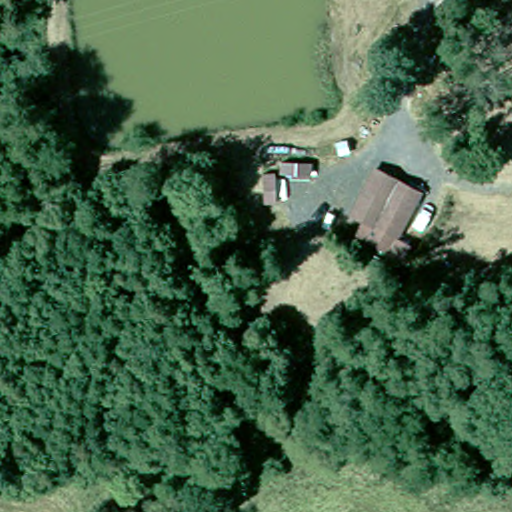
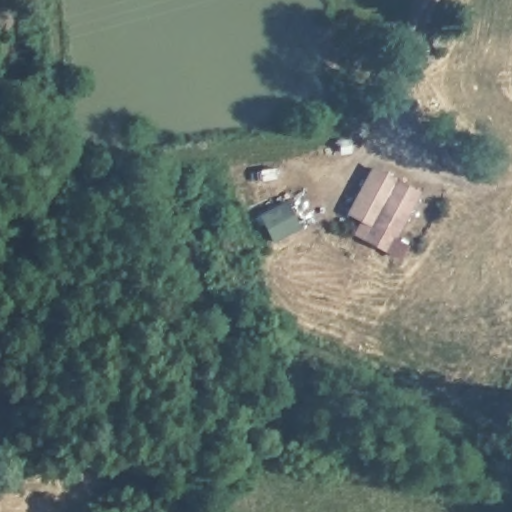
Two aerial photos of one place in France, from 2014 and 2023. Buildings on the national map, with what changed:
unchanged [(362,221),(355,218),(378,173),(415,190),(397,228),(386,249),(363,239),(364,235),(357,232),(362,223),(362,221)]
unchanged [(237,219),(227,223),(217,194),(227,191),(237,219)]
unchanged [(246,257),(236,260),(228,232),(228,231),(238,228),(239,234),(246,257)]

